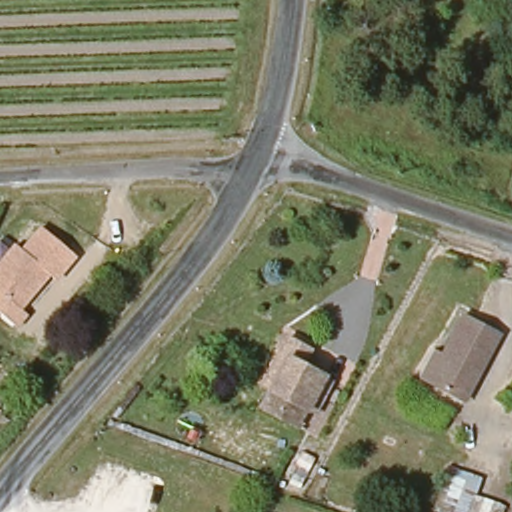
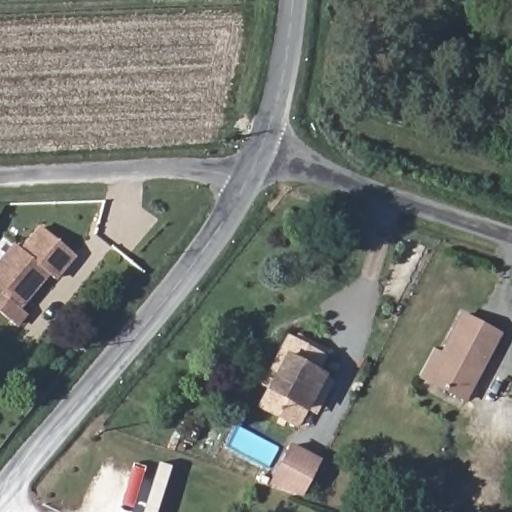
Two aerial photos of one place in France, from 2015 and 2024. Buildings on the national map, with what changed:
unchanged [(55,274),(49,270),(25,309),(29,313),(19,327),(0,315),(0,260),(10,243),(21,250),(36,224),(72,248),(55,274)]
unchanged [(435,351),(443,356),(465,314),(499,331),(464,398),(430,381),(422,376),(435,351)]
unchanged [(316,410),(305,405),(297,422),(261,404),(270,388),(258,381),(275,349),(285,331),(309,343),(300,364),(319,375),(331,382),(316,410)]
new [(267,484),(288,443),(321,459),(302,496),(267,484)]
unchanged [(442,501),(454,468),(482,476),(478,495),(512,507),(512,512),(452,512),(455,505),(442,501)]

